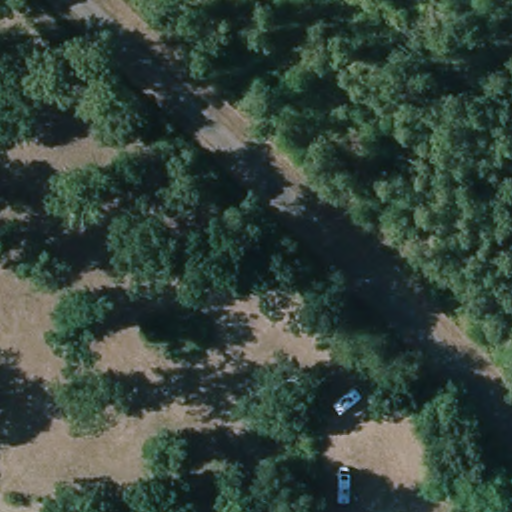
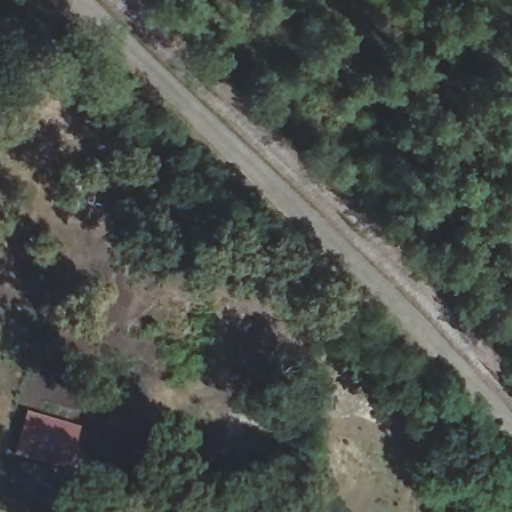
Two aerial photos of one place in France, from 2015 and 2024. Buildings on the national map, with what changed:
new [(26,411),(81,426),(69,469),(14,452),(26,411)]

